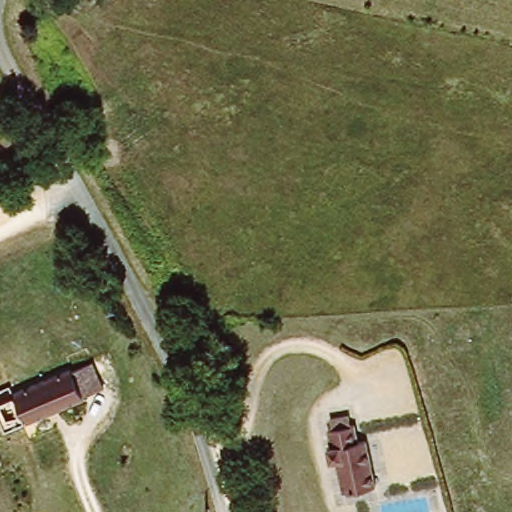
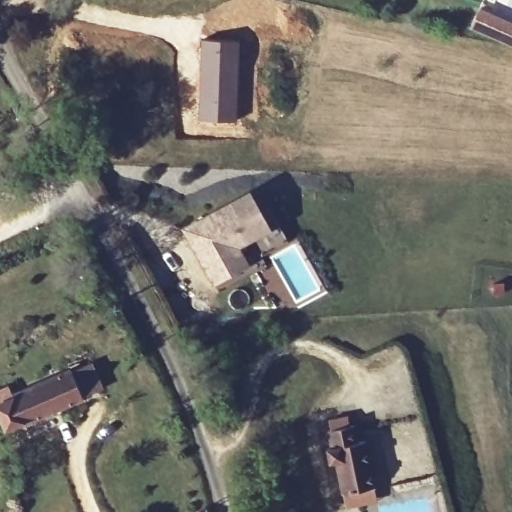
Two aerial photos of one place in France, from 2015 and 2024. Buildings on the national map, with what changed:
new [(200,38),(240,40),(236,121),(197,119),(200,38)]
new [(271,228),(240,246),(250,264),(213,284),(181,228),(249,190),(271,228)]
unchanged [(85,399),(27,422),(15,390),(71,366),(73,369),(93,359),(106,386),(83,394),(85,399)]
unchanged [(367,438),(377,485),(343,491),(336,458),(330,459),(327,446),(332,444),(328,427),(332,428),(330,416),(350,414),(351,423),(355,422),(358,438),(367,438)]

